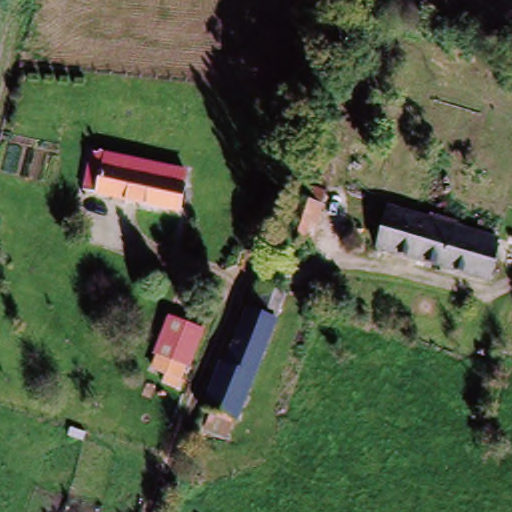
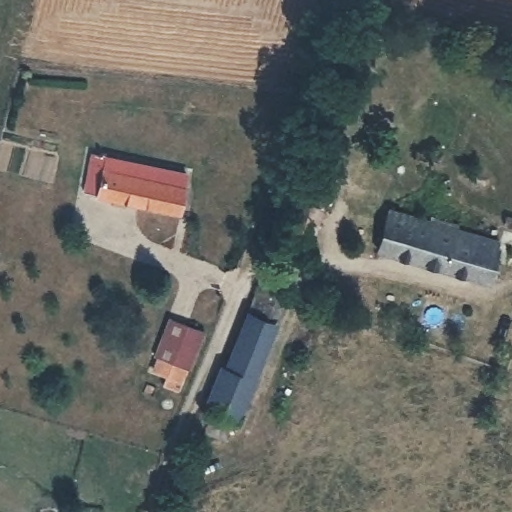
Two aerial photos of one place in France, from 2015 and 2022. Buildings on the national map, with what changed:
unchanged [(185,210),(132,200),(132,204),(120,202),(121,197),(102,194),(83,190),(90,156),(110,160),(192,175),(185,210)]
unchanged [(329,200),(320,223),(314,241),(285,231),(300,189),(329,200)]
unchanged [(391,209),(493,237),(482,272),(381,244),(391,209)]
unchanged [(215,431),(221,412),(215,411),(229,367),(234,368),(261,285),(275,289),(287,292),(285,299),(278,322),(279,323),(248,421),(241,440),(215,431)]
unchanged [(160,390),(164,379),(150,373),(155,360),(151,358),(166,320),(201,333),(186,371),(182,370),(177,384),(173,395),(160,390)]

